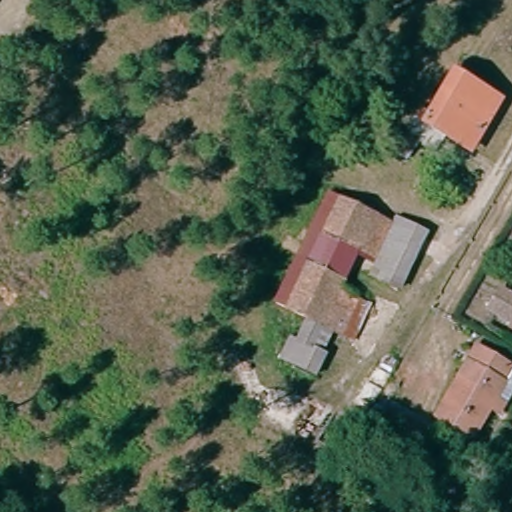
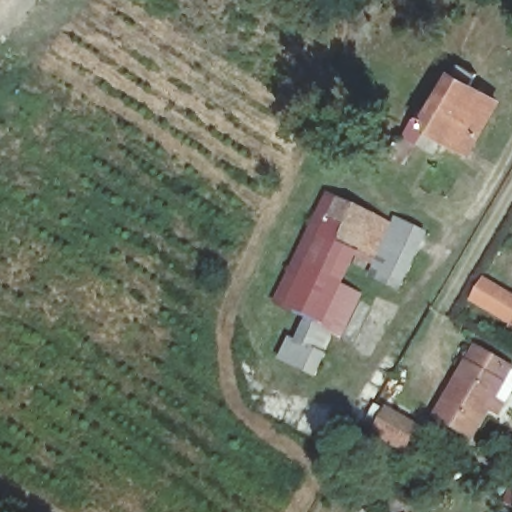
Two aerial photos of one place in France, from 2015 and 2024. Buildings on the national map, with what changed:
unchanged [(475,67),(467,82),(493,97),(465,147),(441,134),(429,156),(393,136),(411,105),(429,115),(461,59),(475,67)]
unchanged [(330,335),(314,377),(277,360),(279,353),(272,348),(289,317),(269,305),(324,192),(392,225),(395,217),(427,234),(401,288),(350,269),(342,283),(361,297),(359,301),(371,307),(353,343),(330,335)]
unchanged [(512,329),(484,312),(500,288),(512,297),(512,329)]
unchanged [(512,375),(512,388),(494,419),(483,412),(468,438),(437,418),(474,352),(507,371),(506,372),(512,375)]
unchanged [(430,432),(414,460),(370,433),(387,406),(430,432)]

